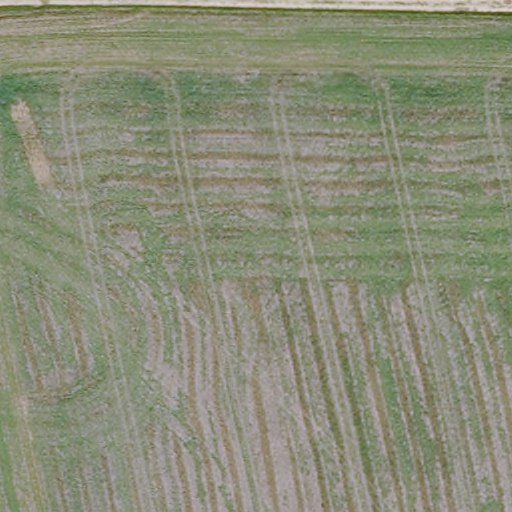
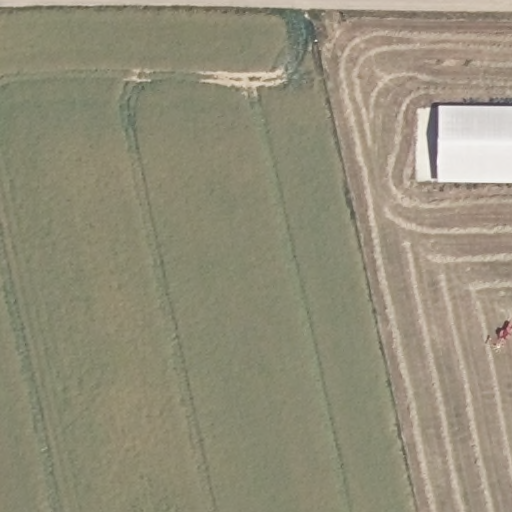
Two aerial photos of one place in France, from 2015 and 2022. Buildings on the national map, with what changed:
new [(512,110),(512,187),(438,186),(438,109),(512,110)]

